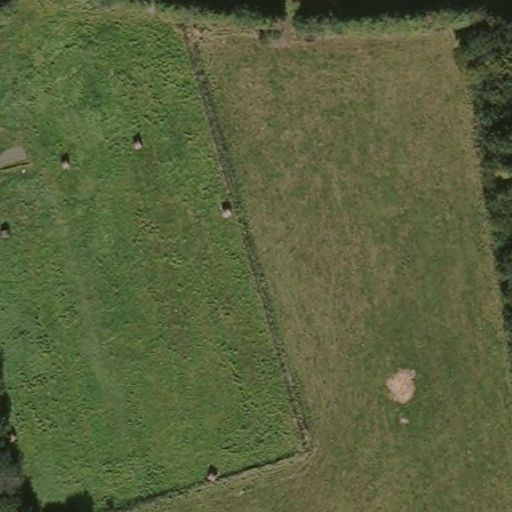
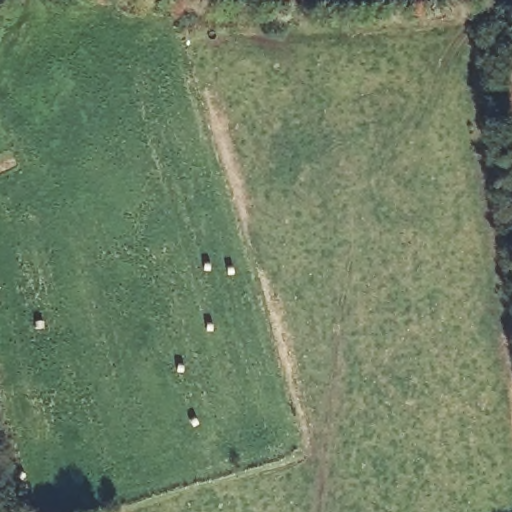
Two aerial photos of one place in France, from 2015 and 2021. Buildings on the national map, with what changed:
[]

